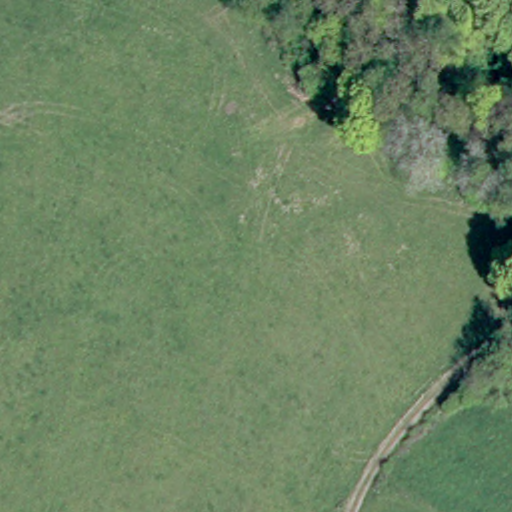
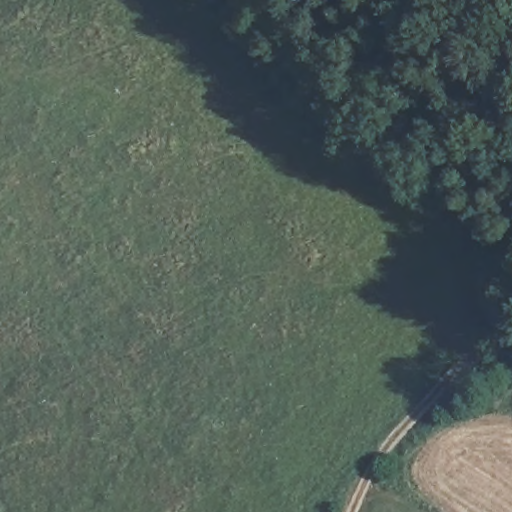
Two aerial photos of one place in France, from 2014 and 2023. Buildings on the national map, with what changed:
[]

